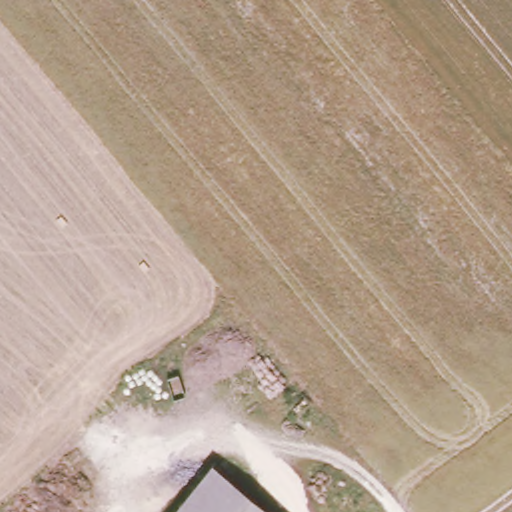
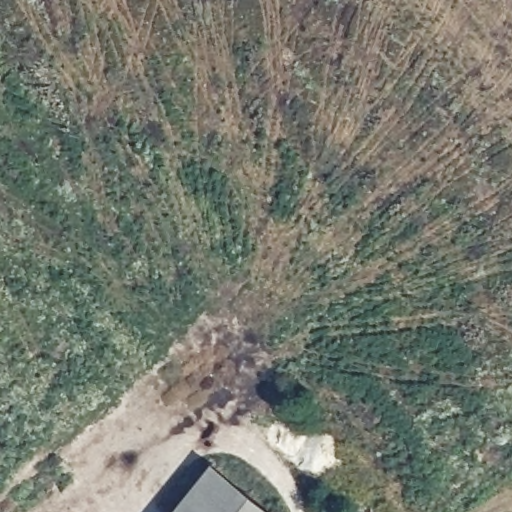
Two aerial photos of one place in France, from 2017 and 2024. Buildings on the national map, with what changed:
unchanged [(276,512),(170,512),(210,461),(276,512)]

